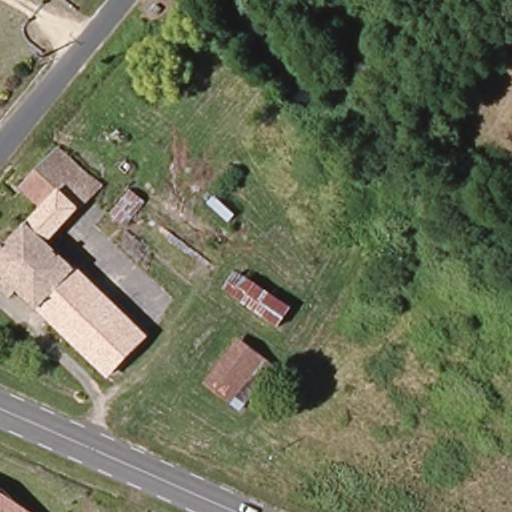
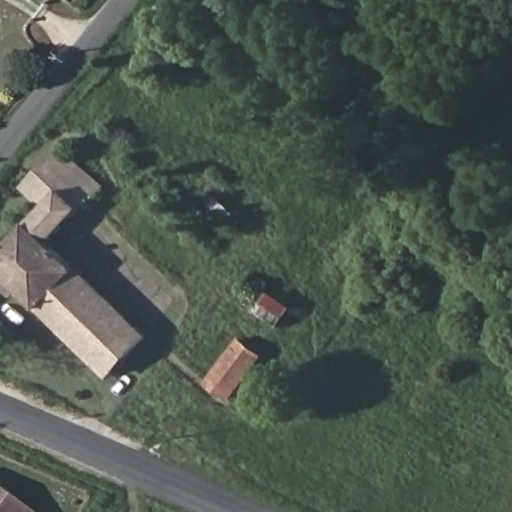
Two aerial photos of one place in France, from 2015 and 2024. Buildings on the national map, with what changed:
unchanged [(45,212),(26,191),(36,181),(30,175),(48,157),(85,194),(56,225),(45,212)]
unchanged [(145,344),(111,380),(0,272),(0,261),(45,212),(56,225),(41,242),(145,344)]
unchanged [(280,333),(226,295),(242,273),(297,308),(280,333)]
unchanged [(242,415),(207,385),(243,338),(278,370),(242,415)]
unchanged [(2,494),(5,497),(7,498),(9,501),(11,502),(12,505),(14,507),(16,509),(17,512),(0,512),(0,493),(1,493),(2,494)]

